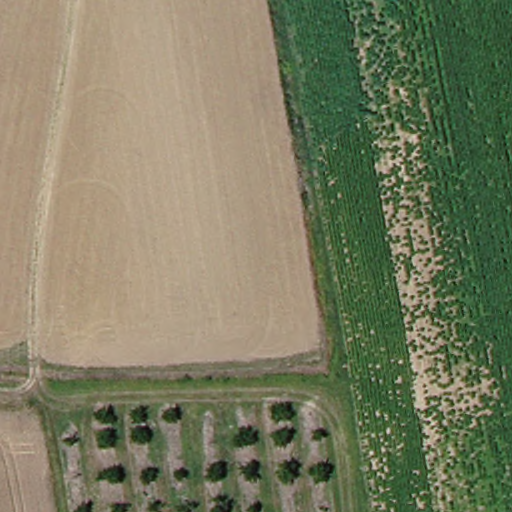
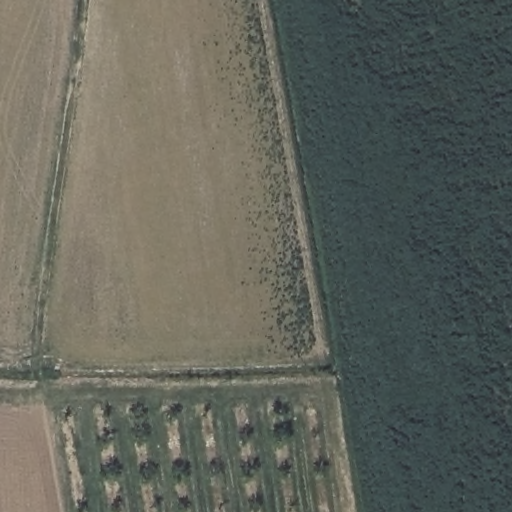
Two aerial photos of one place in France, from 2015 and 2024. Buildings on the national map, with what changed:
[]

